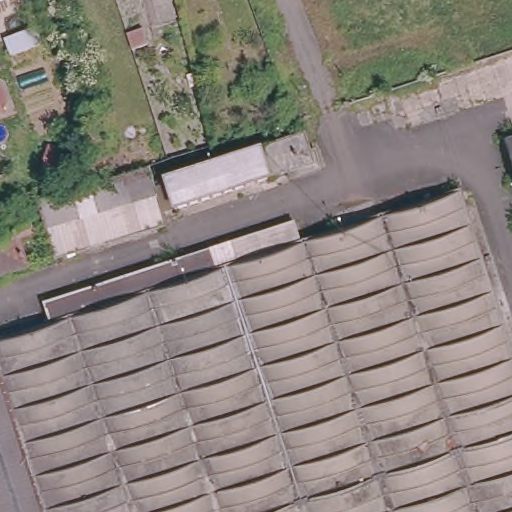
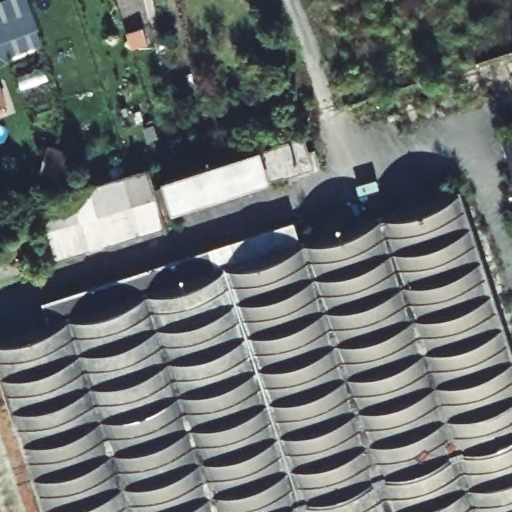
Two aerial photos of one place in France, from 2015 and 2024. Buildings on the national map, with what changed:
new [(3,59),(0,52),(0,0),(29,0),(45,43),(3,59)]
unchanged [(0,112),(0,94),(5,110),(0,112)]
unchanged [(301,165),(291,168),(291,166),(273,172),(274,174),(178,205),(169,176),(303,133),(316,167),(304,171),(301,165)]
unchanged [(505,142),(512,140),(512,164),(505,142)]
unchanged [(151,164),(168,220),(59,254),(43,198),(151,164)]
unchanged [(0,512),(0,334),(48,318),(41,298),(294,219),(301,242),(464,189),(512,343),(512,512),(0,512)]
unchanged [(12,207),(35,200),(43,220),(37,222),(38,228),(20,234),(29,262),(0,271),(0,224),(15,218),(12,207)]

